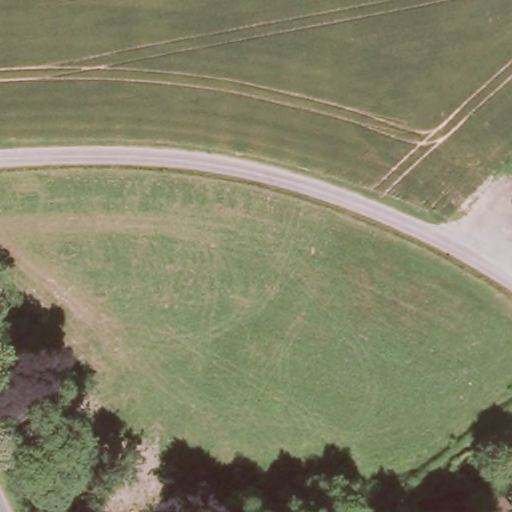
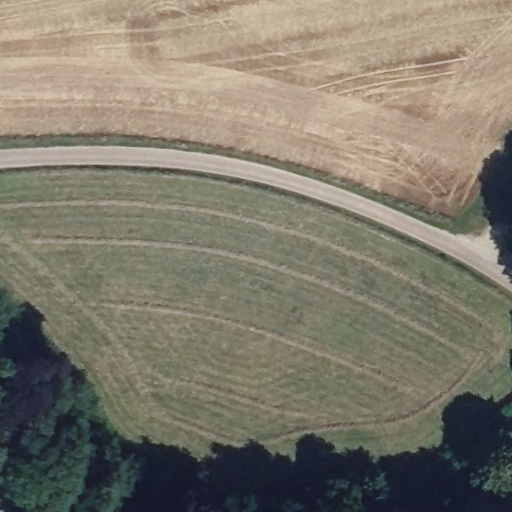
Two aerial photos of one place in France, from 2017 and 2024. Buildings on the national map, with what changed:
unchanged [(505,499),(512,509),(512,512),(489,512),(487,509),(505,499)]

